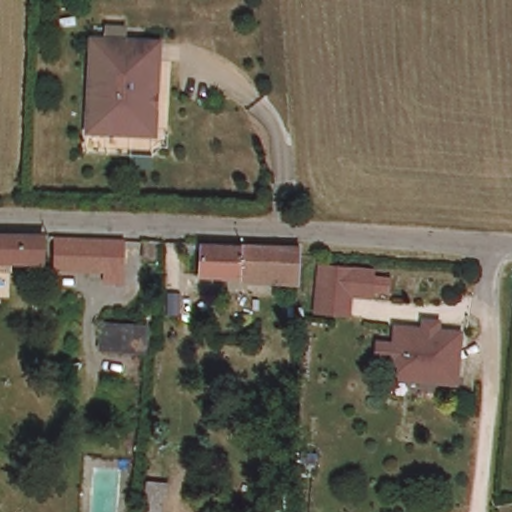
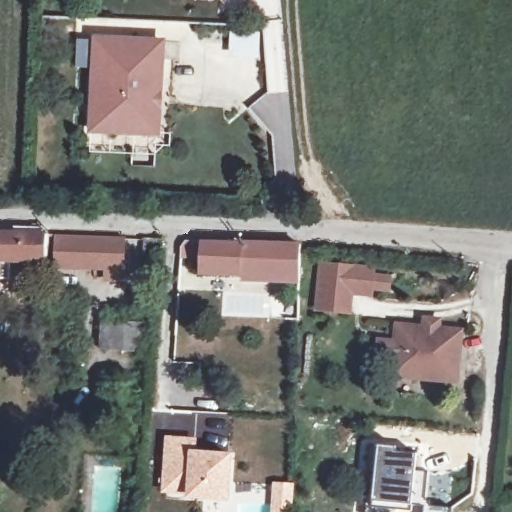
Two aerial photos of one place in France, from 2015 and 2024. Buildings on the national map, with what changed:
unchanged [(134,132),(108,131),(88,130),(88,114),(92,42),(131,44),(161,45),(160,64),(158,95),(158,106),(156,122),(156,134),(134,132)]
unchanged [(48,230),(46,268),(0,265),(0,230),(48,230)]
unchanged [(58,237),(128,236),(127,280),(106,282),(106,274),(58,273),(58,237)]
unchanged [(206,242),(303,249),(301,282),(205,276),(206,242)]
unchanged [(355,268),(375,268),(374,293),(354,292),(354,312),(326,311),(327,267),(355,268)]
unchanged [(149,321),(147,372),(100,372),(104,320),(149,321)]
unchanged [(454,380),(419,375),(389,371),(395,323),(459,330),(454,380)]
new [(195,440),(194,453),(231,455),(228,497),(191,495),(191,490),(166,489),(169,438),(195,440)]
new [(375,475),(367,473),(370,444),(396,447),(396,451),(416,453),(415,470),(427,471),(424,505),(451,506),(451,512),(422,512),(423,505),(412,504),(411,510),(371,506),(375,475)]
demolished [(304,512),(258,512),(257,497),(304,498),(304,512)]

